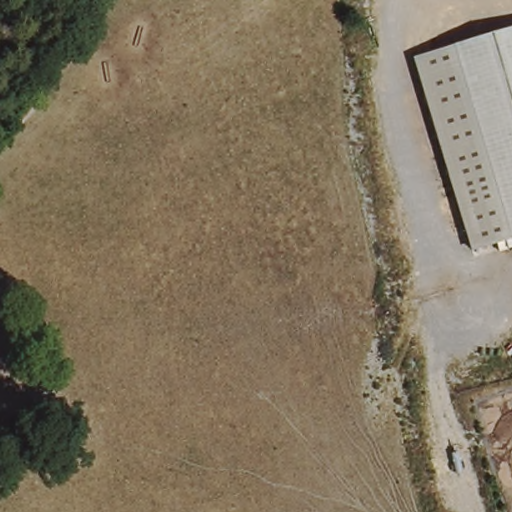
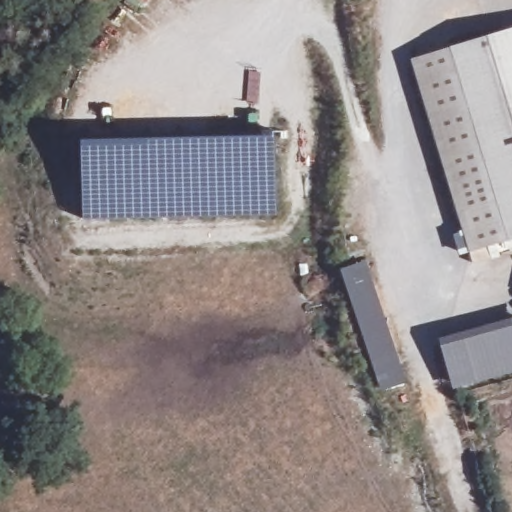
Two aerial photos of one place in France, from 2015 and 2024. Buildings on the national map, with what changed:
unchanged [(503,251),(474,260),(457,203),(494,190),(451,57),(512,38),(512,257),(506,258),(503,251)]
unchanged [(494,190),(457,203),(413,69),(451,57),(494,190)]
new [(274,134),(276,214),(235,215),(149,215),(83,217),(80,138),(274,134)]
new [(366,259),(395,343),(407,382),(381,391),(339,268),(366,259)]
new [(512,376),(497,381),(456,392),(445,355),(512,335),(512,376)]

